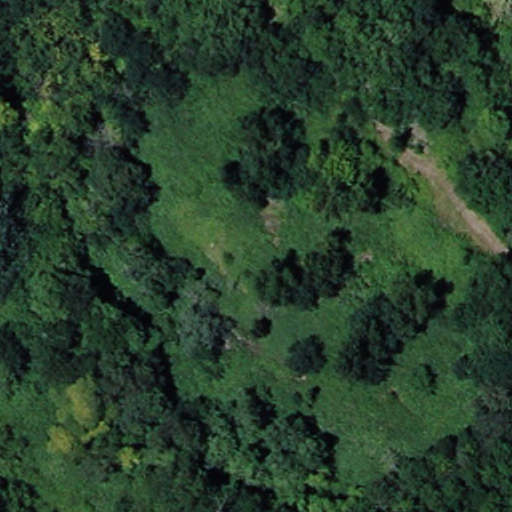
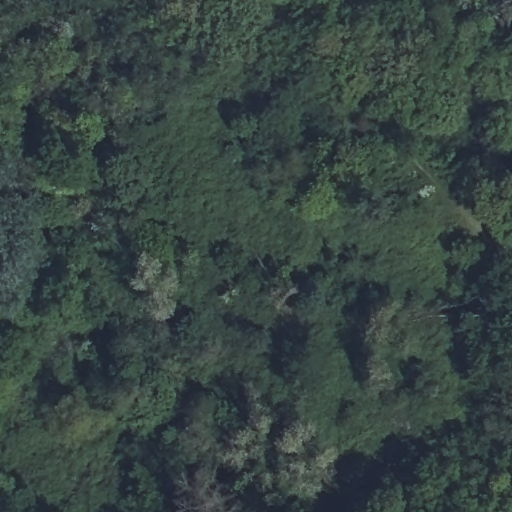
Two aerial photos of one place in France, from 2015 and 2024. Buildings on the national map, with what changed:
[]

